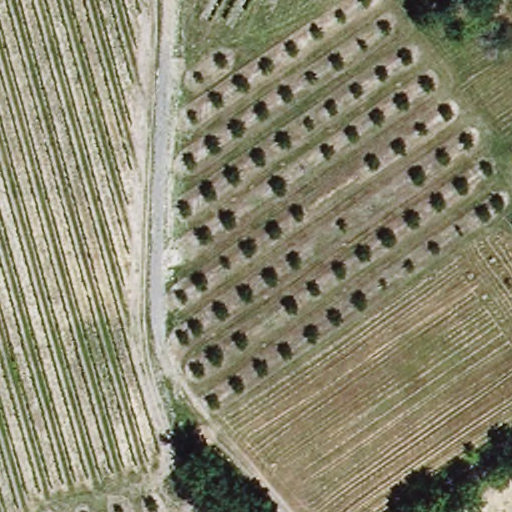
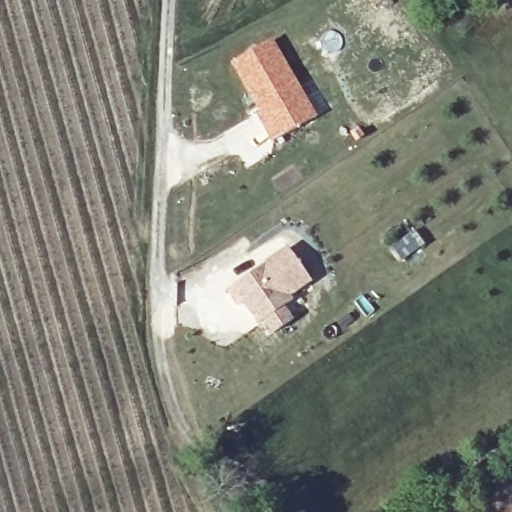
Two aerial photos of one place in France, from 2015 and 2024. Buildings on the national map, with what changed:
new [(232,64),(271,43),(313,120),(273,141),(232,64)]
new [(313,282),(292,297),(295,301),(285,308),(295,321),(273,337),(264,325),(260,328),(242,305),(237,307),(227,291),(287,247),(313,282)]

